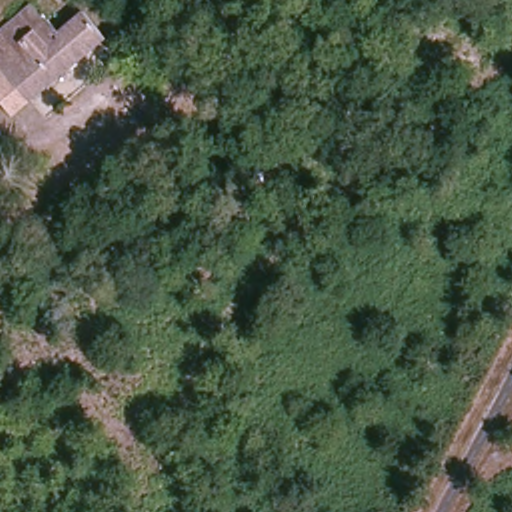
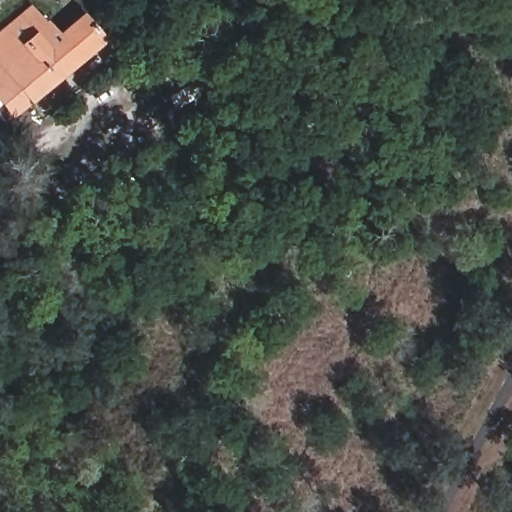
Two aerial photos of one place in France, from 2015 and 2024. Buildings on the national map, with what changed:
unchanged [(0,98),(0,29),(30,3),(55,32),(80,12),(101,37),(52,78),(11,113),(0,98)]

